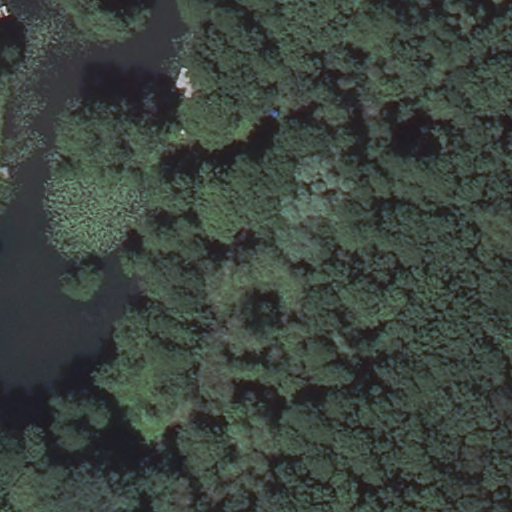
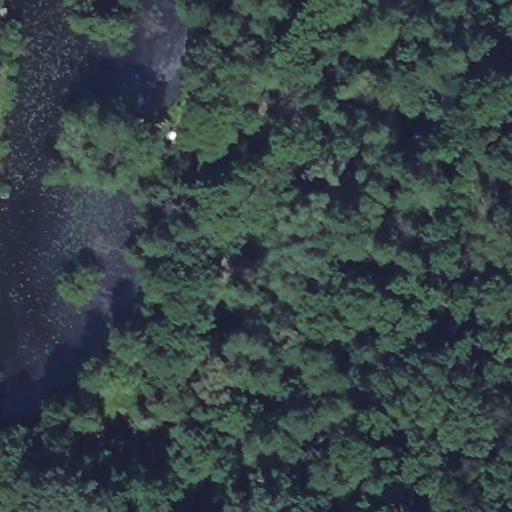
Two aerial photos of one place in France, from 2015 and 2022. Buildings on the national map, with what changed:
unchanged [(100,422),(97,430),(110,438),(95,463),(80,453),(89,440),(72,428),(82,411),(100,422)]

